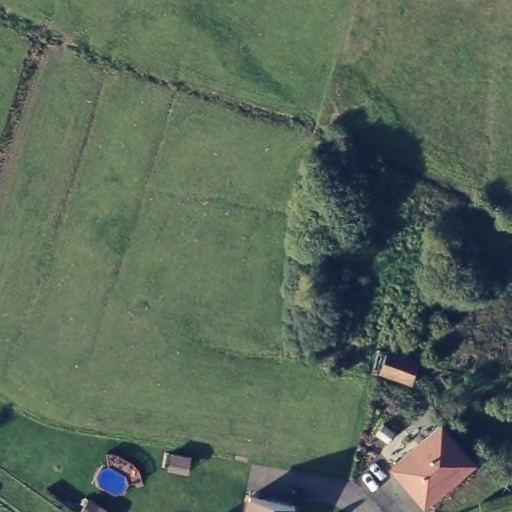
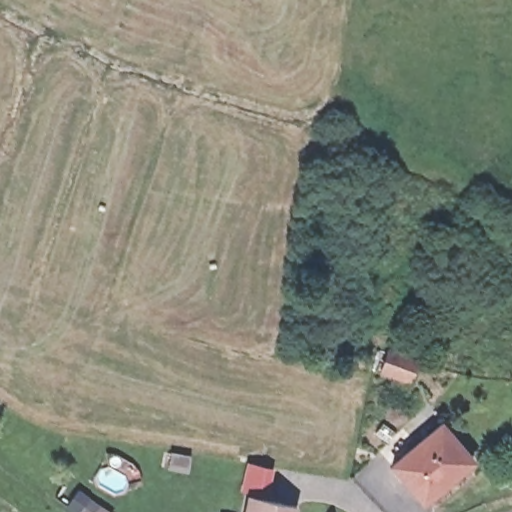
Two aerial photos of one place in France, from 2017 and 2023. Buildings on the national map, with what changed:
unchanged [(419,493),(393,461),(441,419),(473,457),(444,482),(424,498),(419,493)]
unchanged [(295,501),(293,512),(246,512),(250,491),(295,501)]

